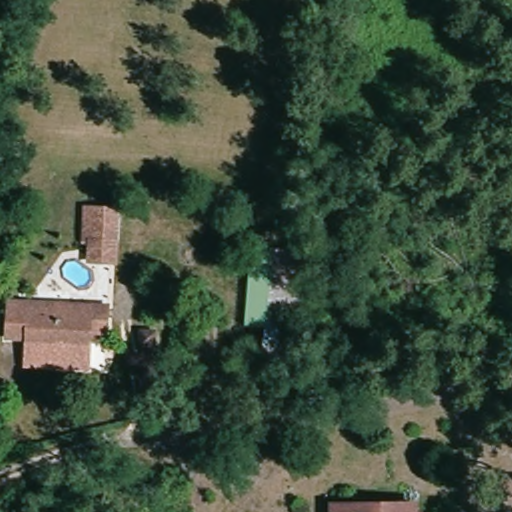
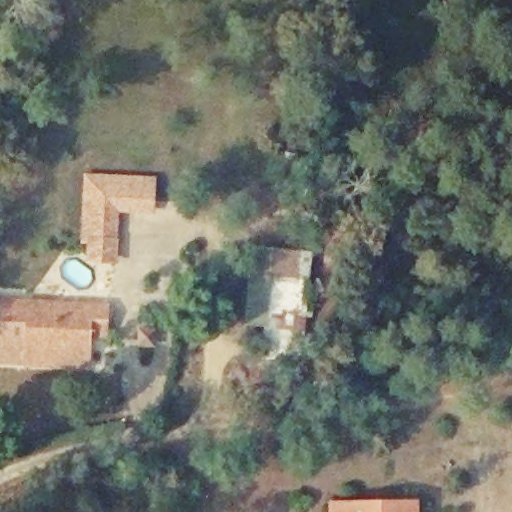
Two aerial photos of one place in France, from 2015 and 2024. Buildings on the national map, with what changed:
new [(119,208),(83,206),(84,174),(156,177),(155,214),(119,212),(119,208)]
unchanged [(119,208),(119,265),(87,264),(88,243),(82,243),(83,206),(119,208)]
unchanged [(249,245),(308,249),(303,332),(283,330),(281,351),(263,349),(264,329),(244,328),(249,245)]
unchanged [(0,302),(24,303),(85,306),(98,307),(96,336),(79,336),(78,340),(22,339),(22,334),(0,333),(0,302)]
unchanged [(78,340),(91,339),(91,370),(23,368),(22,339),(78,340)]
unchanged [(148,384),(126,383),(126,370),(149,370),(148,384)]
unchanged [(361,484),(360,501),(416,505),(415,512),(328,512),(331,482),(361,484)]

